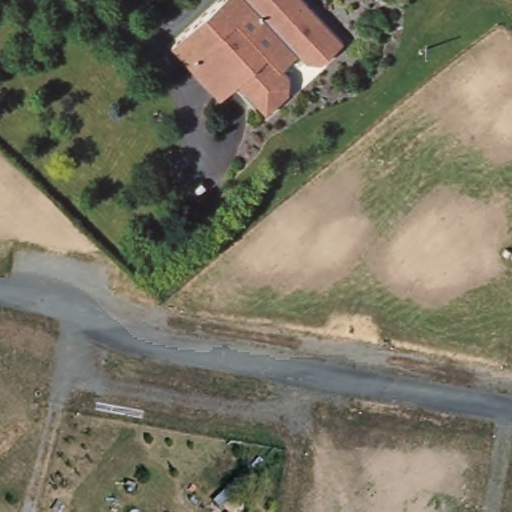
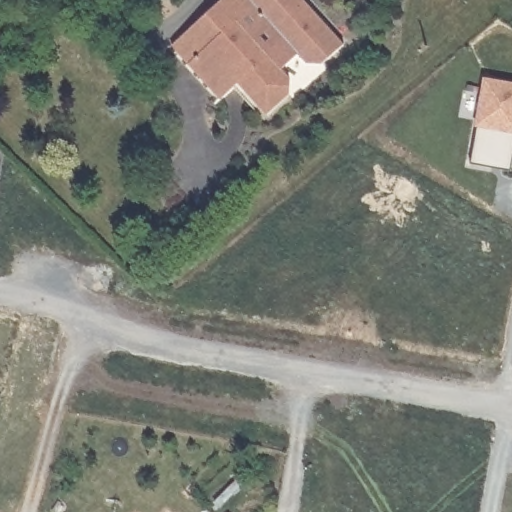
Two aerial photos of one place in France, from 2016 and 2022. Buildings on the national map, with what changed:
unchanged [(350,41),(322,67),(310,64),(295,52),(281,65),(292,76),(295,90),(263,119),(235,88),(219,101),(172,42),(219,0),(309,0),(350,41)]
new [(512,81),(512,156),(510,168),(472,161),(479,127),(475,126),(484,76),(512,81)]

